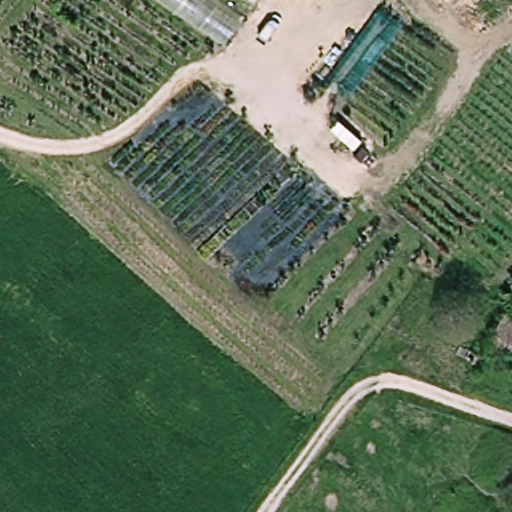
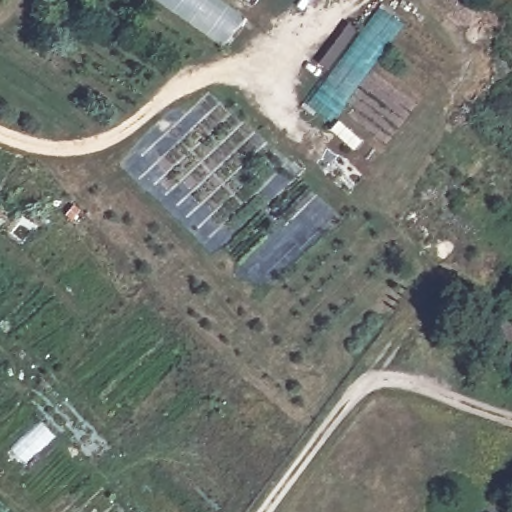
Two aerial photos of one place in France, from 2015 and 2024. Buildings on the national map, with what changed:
unchanged [(242,21),(227,42),(167,0),(212,0),(242,21)]
unchanged [(493,324),(504,305),(512,310),(512,361),(509,366),(494,359),(477,350),(493,324)]

